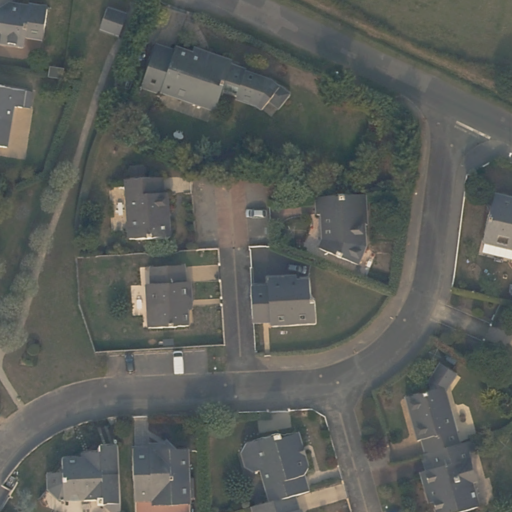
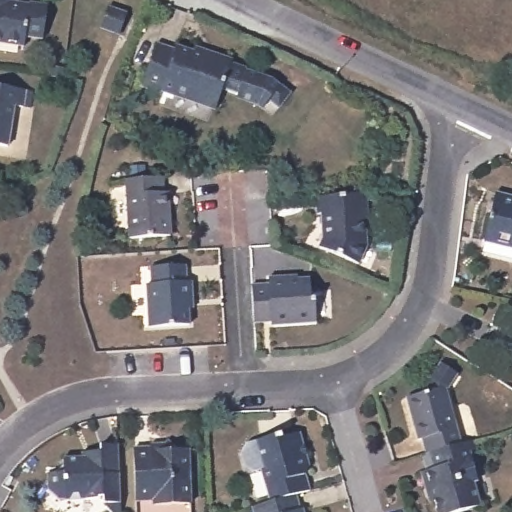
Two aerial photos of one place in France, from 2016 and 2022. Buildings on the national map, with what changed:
unchanged [(28,5),(29,3),(47,6),(42,38),(27,36),(25,46),(0,42),(0,0),(12,0),(12,3),(28,5)]
unchanged [(115,29),(106,25),(98,21),(104,4),(113,7),(121,11),(115,29)]
unchanged [(214,101),(161,83),(160,86),(141,79),(155,38),(174,45),(175,41),(206,51),(208,46),(216,49),(231,54),(219,89),(214,101)]
unchanged [(279,83),(290,91),(278,109),(268,104),(264,110),(223,91),(236,61),(279,83)]
unchanged [(15,109),(7,108),(1,149),(0,148),(0,89),(17,91),(15,109)]
unchanged [(157,189),(160,189),(162,234),(125,236),(122,177),(156,175),(157,189)]
unchanged [(487,245),(490,234),(488,234),(498,189),(512,192),(512,250),(487,245)]
unchanged [(370,192),(371,222),(368,223),(369,246),(362,262),(325,246),(328,238),(328,225),(325,226),(324,212),(320,212),(319,195),(370,192)]
unchanged [(185,311),(186,327),(150,330),(147,287),(153,286),(152,271),(183,269),(184,284),(190,284),(190,300),(191,311),(185,311)]
unchanged [(272,287),(272,281),(290,279),(291,282),(311,281),(313,302),(317,301),(319,326),(274,329),(274,325),(258,326),(256,287),(272,287)]
unchanged [(416,443),(413,443),(401,401),(427,394),(424,383),(434,366),(450,377),(441,390),(439,391),(455,445),(420,455),(416,443)]
unchanged [(274,498),(265,467),(257,469),(248,462),(245,449),(251,440),(284,431),(285,434),(302,430),(312,466),(308,473),(312,488),(300,491),(295,492),(274,498)]
unchanged [(149,445),(149,442),(162,441),(163,449),(187,448),(188,499),(150,501),(150,497),(135,498),(133,446),(149,445)]
unchanged [(469,441),(472,451),(463,453),(471,482),(466,484),(472,507),(453,512),(431,512),(424,488),(420,490),(415,473),(421,471),(417,456),(420,455),(455,445),(460,444),(469,441)]
unchanged [(110,505),(107,505),(102,502),(96,501),(95,497),(65,498),(64,496),(57,496),(49,485),(48,471),(62,471),(63,468),(63,457),(77,456),(77,449),(85,449),(99,448),(99,444),(118,443),(120,505),(121,512),(111,512),(110,505)]
unchanged [(299,506),(301,506),(303,512),(256,512),(254,504),(274,498),(295,492),(299,506)]

